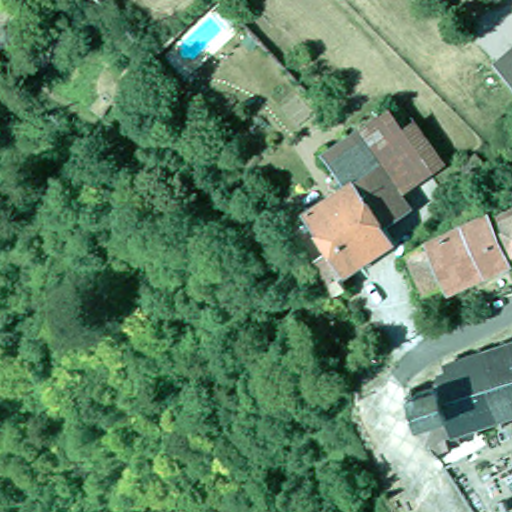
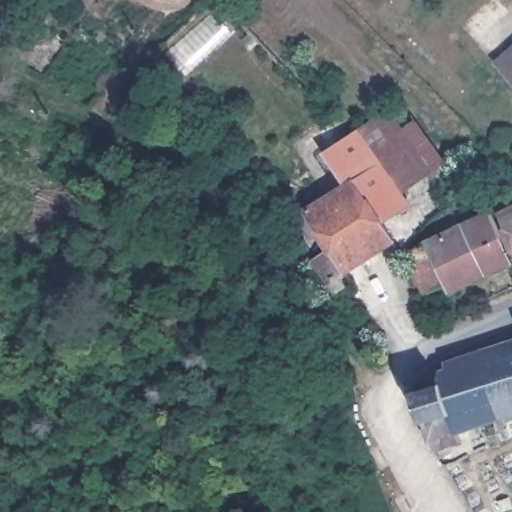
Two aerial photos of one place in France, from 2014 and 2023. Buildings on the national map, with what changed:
unchanged [(512,87),(487,58),(512,37),(512,87)]
unchanged [(295,205),(335,178),(318,146),(402,97),(436,155),(398,176),(408,196),(378,214),(390,237),(340,271),(295,205)]
unchanged [(465,175),(455,161),(468,151),(478,165),(465,175)]
unchanged [(512,199),(512,251),(491,211),(512,199)]
unchanged [(504,260),(443,291),(439,283),(422,291),(403,252),(413,247),(408,237),(422,229),(427,237),(477,210),(481,216),(504,260)]
unchanged [(503,412),(495,414),(493,411),(454,423),(427,430),(425,430),(423,426),(420,417),(417,416),(413,408),(411,399),(407,384),(428,377),(427,368),(433,366),(433,362),(442,359),(442,352),(451,349),(450,343),(455,341),(457,348),(475,342),(473,339),(473,335),(477,333),(479,334),(482,340),(498,335),(496,329),(500,326),(503,328),(505,331),(505,333),(512,330),(512,405),(503,407),(503,412)]

